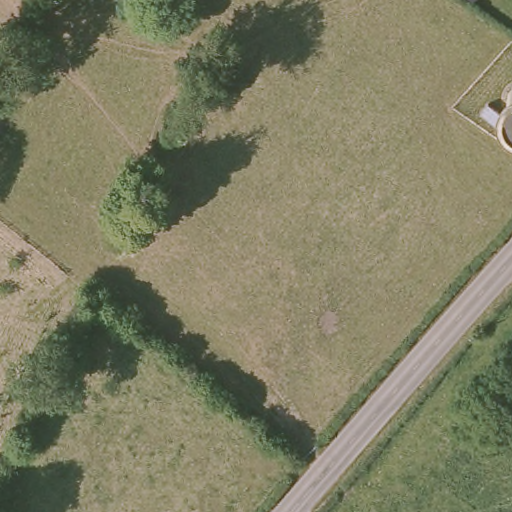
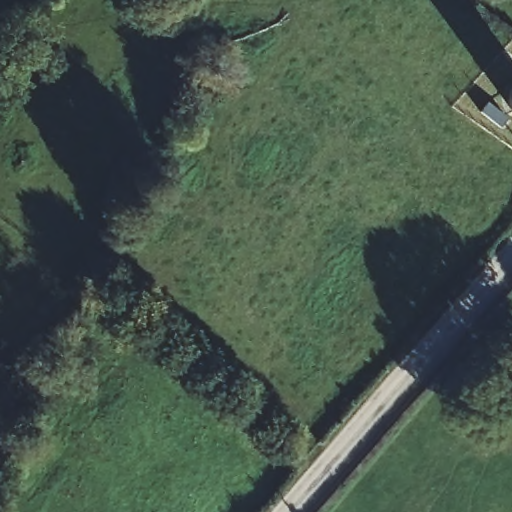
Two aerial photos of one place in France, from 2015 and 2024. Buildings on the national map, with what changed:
[]

